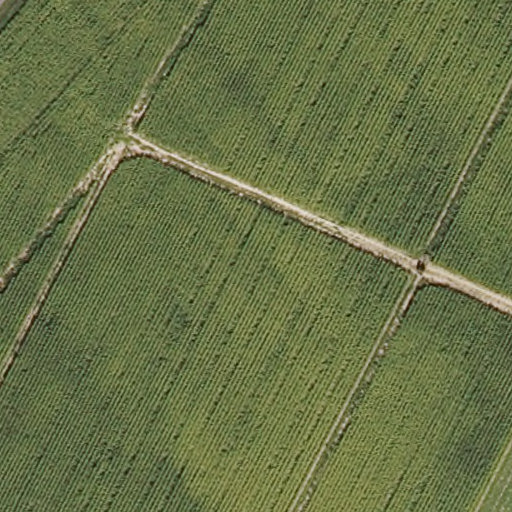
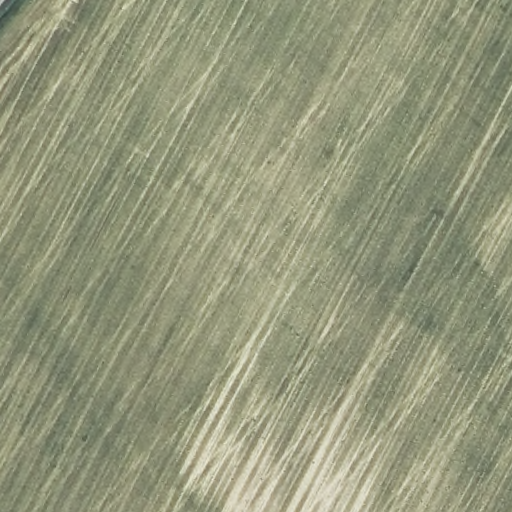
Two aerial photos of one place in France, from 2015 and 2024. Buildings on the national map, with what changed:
[]

